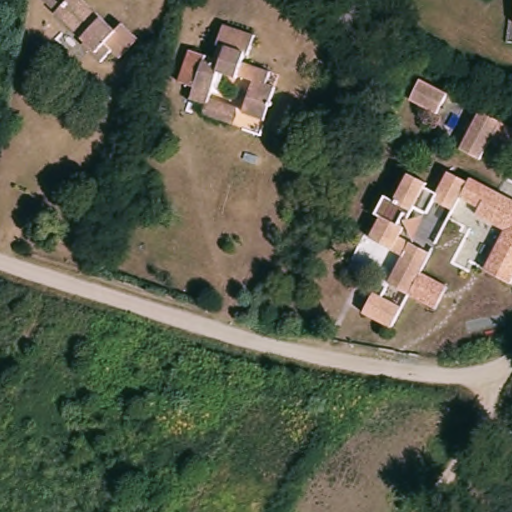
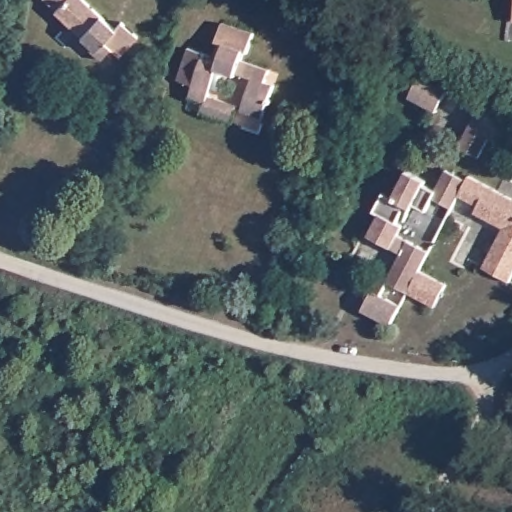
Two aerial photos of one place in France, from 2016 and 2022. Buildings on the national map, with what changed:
unchanged [(122,16),(138,31),(120,51),(112,44),(101,55),(83,37),(86,35),(55,5),(56,4),(51,0),(90,0),(115,23),(122,16)]
unchanged [(243,105),(254,73),(237,67),(236,70),(218,65),(209,90),(239,100),(233,117),(203,107),(206,97),(190,92),(203,53),(219,58),(225,40),(217,37),(223,17),(255,27),(248,47),(245,46),(242,55),(270,65),(266,76),(275,80),(264,112),(243,105)]
unchanged [(437,111),(410,97),(420,77),(447,91),(437,111)]
unchanged [(479,162),(459,151),(479,114),(499,124),(479,162)]
unchanged [(426,175),(424,180),(436,186),(448,164),(467,175),(453,203),(434,193),(427,206),(414,200),(412,204),(407,201),(398,218),(403,220),(398,229),(430,245),(408,287),(388,276),(402,249),(369,231),(381,210),(374,206),(384,188),(394,193),(408,166),(426,175)]
unchanged [(483,268),(504,230),(476,215),(480,209),(460,199),(471,177),(512,200),(512,280),(510,284),(483,268)]
unchanged [(435,309),(405,292),(408,287),(417,270),(447,286),(435,309)]
unchanged [(362,305),(373,285),(401,300),(391,320),(362,305)]

